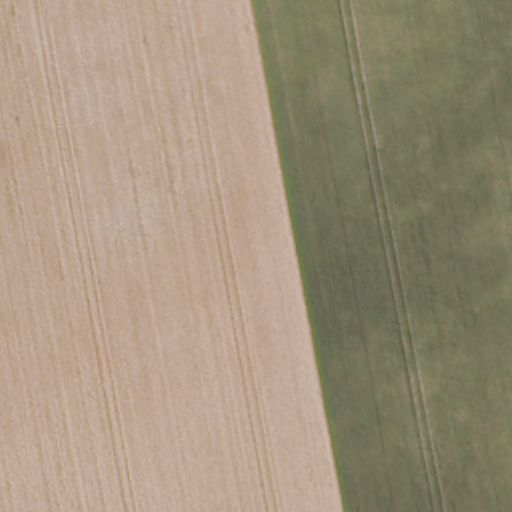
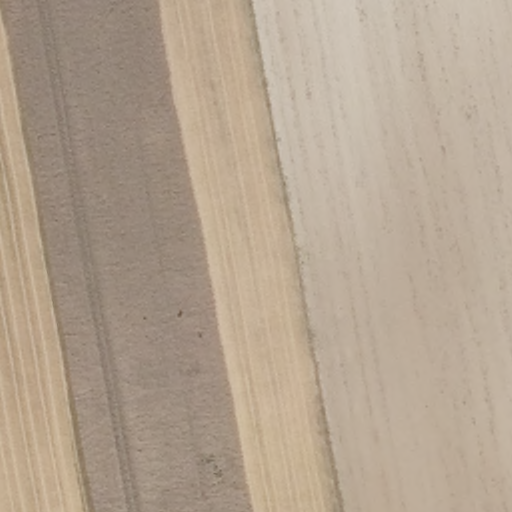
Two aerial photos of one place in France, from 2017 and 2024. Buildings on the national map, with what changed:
[]

